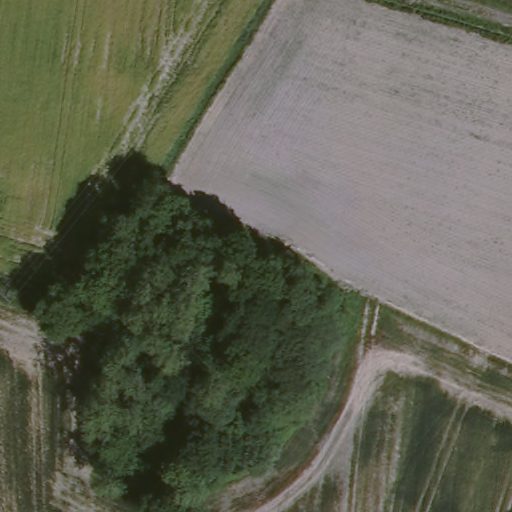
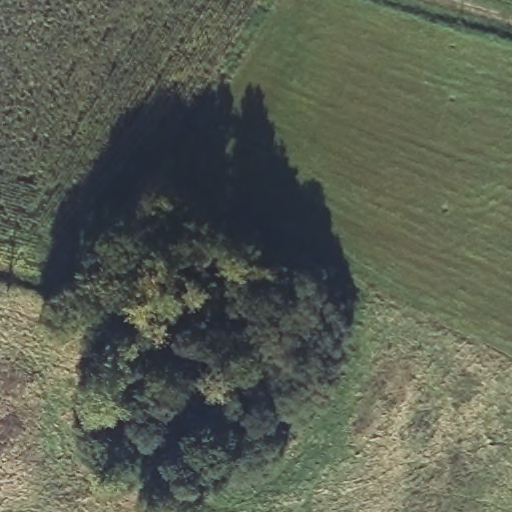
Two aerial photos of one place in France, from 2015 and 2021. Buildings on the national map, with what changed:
[]

